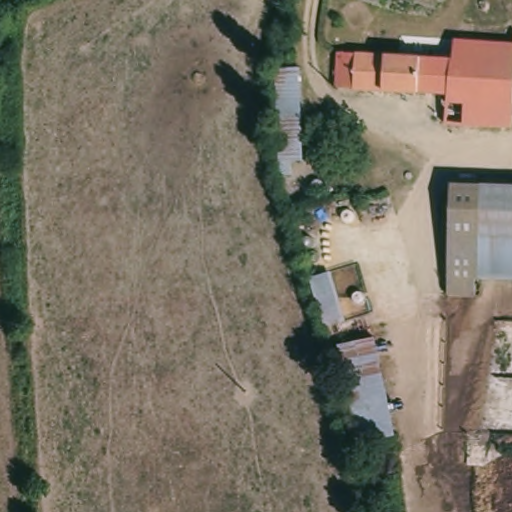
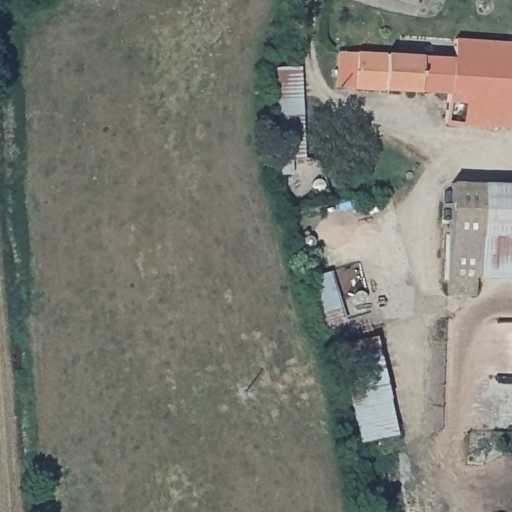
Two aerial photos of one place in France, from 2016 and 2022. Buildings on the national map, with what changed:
unchanged [(445,89),(333,83),(334,47),(444,55),(444,44),(451,44),(452,26),(483,27),(512,29),(512,52),(511,75),(509,125),(444,125),(445,89)]
unchanged [(303,163),(281,164),(274,70),(299,69),(303,163)]
unchanged [(481,280),(481,297),(452,298),(448,190),(477,190),(481,280)]
unchanged [(512,280),(481,280),(477,190),(512,190),(512,280)]
unchanged [(336,345),(376,337),(396,436),(358,443),(336,345)]

